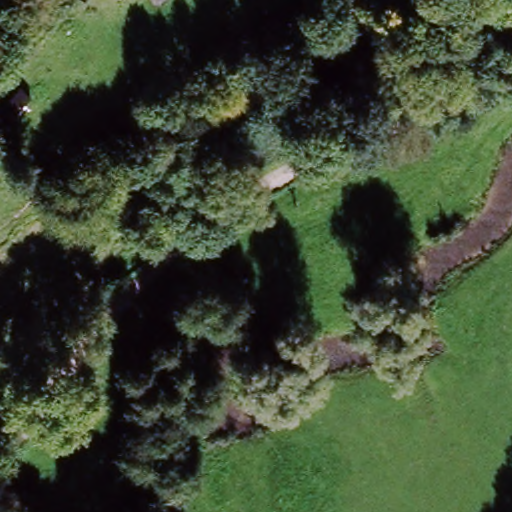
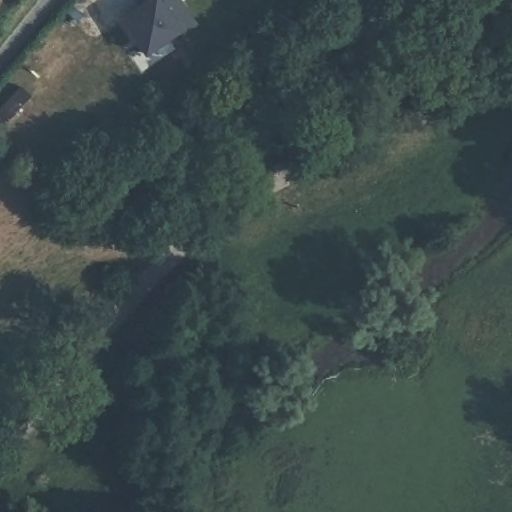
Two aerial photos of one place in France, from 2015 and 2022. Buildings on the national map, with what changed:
new [(175,27),(174,25),(140,48),(117,14),(133,2),(131,0),(178,0),(190,17),(175,27)]

